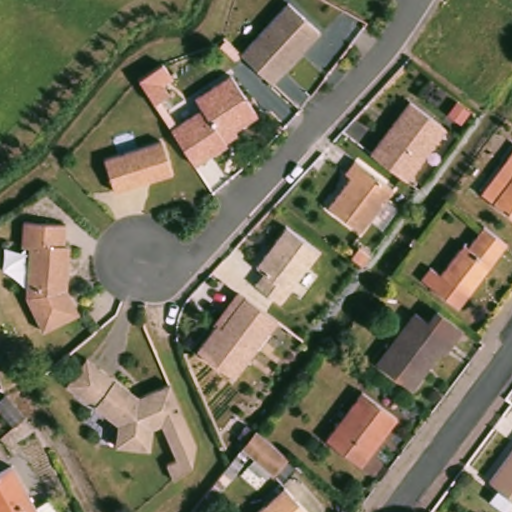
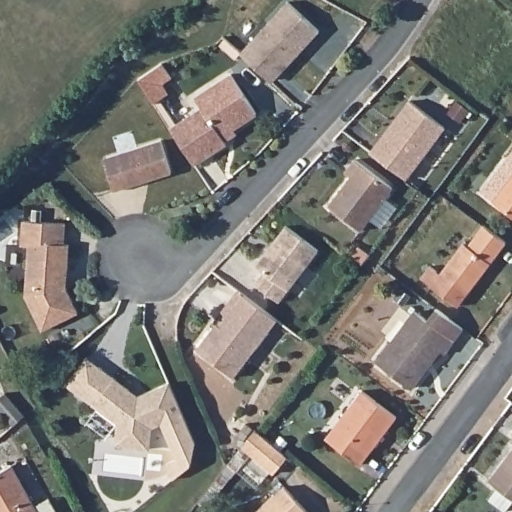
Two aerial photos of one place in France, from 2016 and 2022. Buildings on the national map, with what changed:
unchanged [(283,6),(288,0),(321,30),(286,69),(284,67),(272,80),(257,65),(243,50),(283,6)]
unchanged [(159,68),(170,85),(160,90),(166,100),(151,110),(136,85),(159,68)]
unchanged [(221,145),(223,148),(191,169),(168,134),(199,114),(192,103),(227,80),(254,118),(230,133),(233,137),(221,145)]
unchanged [(384,167),(371,159),(408,105),(445,130),(407,184),(384,167)]
unchanged [(163,135),(174,168),(117,187),(106,155),(163,135)]
unchanged [(349,171),(343,167),(353,154),(391,182),(360,225),(327,201),(349,171)]
unchanged [(503,212),(490,203),(512,174),(512,220),(503,212)]
unchanged [(74,292),(79,302),(82,308),(46,326),(44,321),(29,292),(31,242),(24,242),(25,217),(67,219),(66,240),(71,240),(70,266),(70,283),(74,292)]
unchanged [(507,247),(458,308),(423,283),(433,270),(443,277),(467,244),(471,247),(485,229),(507,247)]
unchanged [(318,255),(281,308),(252,288),(261,276),(256,273),(265,261),(275,247),(285,232),(318,255)]
unchanged [(239,375),(201,349),(219,322),(216,320),(239,287),(245,291),(280,314),(239,375)]
unchanged [(466,334),(447,357),(442,353),(412,390),(380,365),(415,316),(430,327),(440,313),(466,334)]
unchanged [(128,383),(130,386),(136,391),(165,381),(167,380),(173,399),(181,411),(180,412),(151,425),(145,448),(112,441),(117,420),(98,402),(90,395),(77,385),(100,359),(112,370),(117,385),(128,383)]
unchanged [(362,468),(325,441),(360,393),(397,420),(362,468)]
unchanged [(0,414),(0,409),(10,400),(27,425),(15,433),(0,414)]
unchanged [(288,459),(269,472),(246,440),(265,428),(288,459)]
unchanged [(486,506),(498,491),(490,484),(512,455),(512,509),(510,512),(494,512),(486,506)]
unchanged [(0,474),(10,469),(35,512),(0,512),(0,474)]
unchanged [(285,488),(307,512),(258,512),(285,488)]

